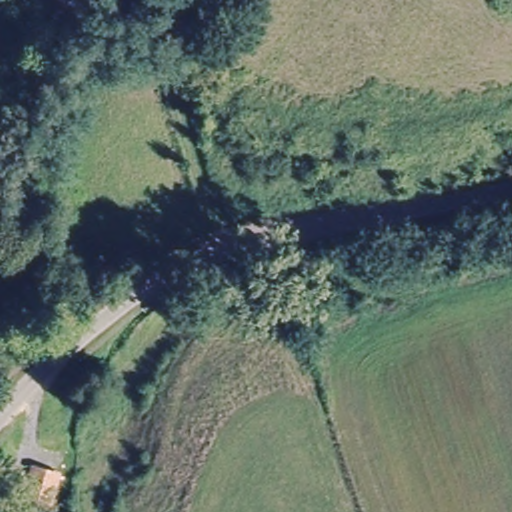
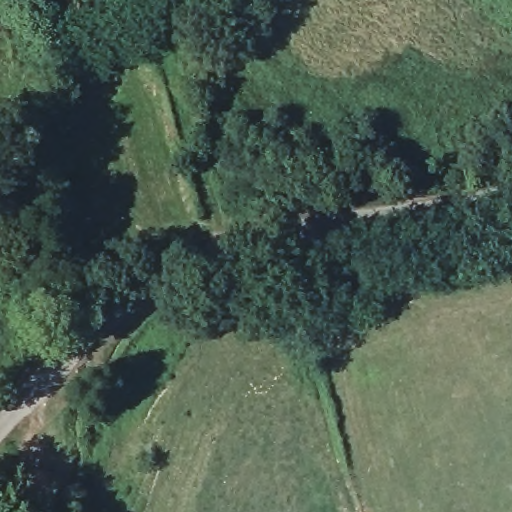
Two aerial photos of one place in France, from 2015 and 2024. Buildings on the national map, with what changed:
unchanged [(58,29),(43,3),(49,0),(93,0),(97,6),(58,29)]
unchanged [(61,479),(52,512),(25,504),(34,472),(61,479)]

